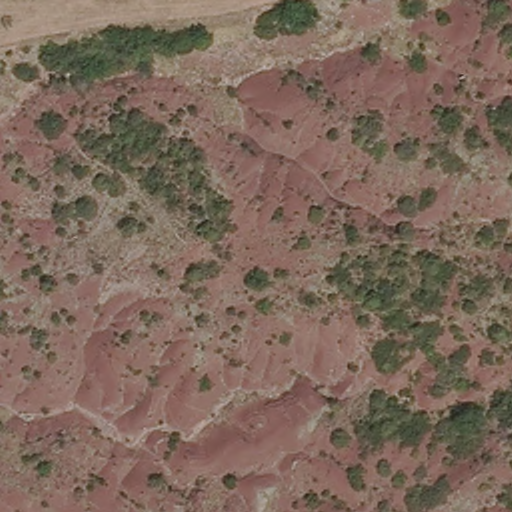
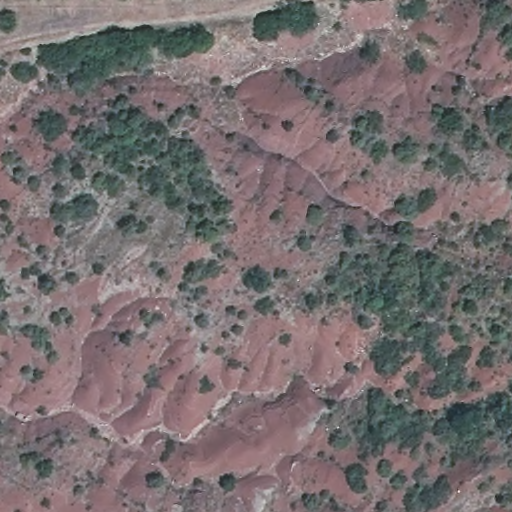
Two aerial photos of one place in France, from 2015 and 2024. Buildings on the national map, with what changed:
[]

